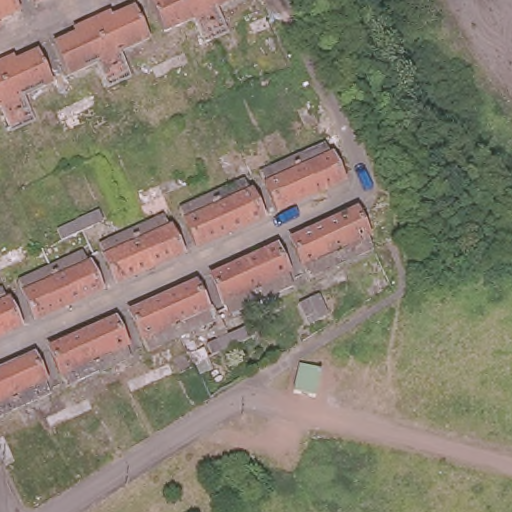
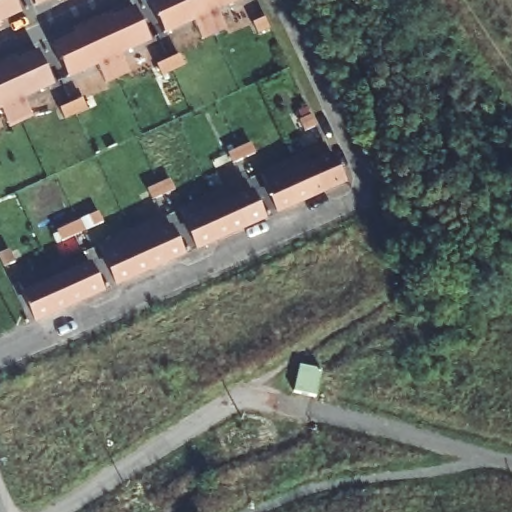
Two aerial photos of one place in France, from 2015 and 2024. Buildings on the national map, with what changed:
unchanged [(0,21),(0,0),(14,0),(19,12),(0,21)]
unchanged [(33,0),(47,0),(35,6),(33,0)]
unchanged [(150,2),(154,0),(198,0),(205,16),(165,34),(150,2)]
unchanged [(240,0),(205,16),(198,0),(240,0)]
unchanged [(105,90),(91,63),(68,73),(53,41),(74,31),(72,26),(89,18),(109,9),(111,15),(134,5),(148,36),(116,51),(128,79),(105,90)]
unchanged [(8,131),(0,111),(0,59),(12,53),(14,59),(37,48),(52,81),(22,94),(35,120),(8,131)]
unchanged [(291,153),(317,141),(325,156),(330,154),(340,178),(308,192),(291,153)]
unchanged [(308,192),(276,206),(265,183),(269,181),(262,166),(291,153),(308,192)]
unchanged [(236,182),(243,197),(248,196),(258,219),(228,233),(210,193),(236,182)]
unchanged [(228,233),(194,248),(184,225),(189,222),(182,206),(210,193),(228,233)]
demolished [(321,225),(355,210),(366,233),(362,235),(367,248),(338,261),(321,225)]
new [(56,232),(98,213),(102,223),(60,242),(56,232)]
unchanged [(155,218),(162,234),(166,233),(177,256),(146,270),(128,230),(155,218)]
demolished [(340,267),(318,276),(316,271),(311,273),(305,260),(300,262),(289,240),(321,225),(338,261),(340,267)]
unchanged [(146,270),(114,284),(103,261),(108,259),(101,242),(128,230),(146,270)]
demolished [(241,261),(272,247),(283,270),(277,272),(283,285),(257,297),(241,261)]
unchanged [(75,254),(82,271),(86,269),(96,292),(65,306),(47,267),(75,254)]
demolished [(260,302),(236,313),(233,308),(229,310),(222,297),(218,298),(207,276),(241,261),(257,297),(260,302)]
unchanged [(65,306),(31,321),(21,297),(27,295),(20,279),(47,267),(65,306)]
demolished [(159,298),(191,284),(201,306),(195,309),(201,323),(196,325),(198,330),(178,340),(159,298)]
demolished [(157,349),(155,344),(150,346),(142,333),(138,335),(127,313),(159,298),(178,340),(157,349)]
demolished [(0,307),(6,304),(16,327),(0,335),(0,305),(0,307)]
demolished [(77,334),(110,320),(120,342),(115,345),(121,358),(94,370),(77,334)]
demolished [(67,382),(61,370),(57,372),(46,348),(77,334),(94,370),(67,382)]
demolished [(0,373),(0,369),(30,356),(41,379),(35,382),(40,394),(35,396),(37,403),(18,411),(15,405),(0,373)]
new [(299,363),(325,370),(317,399),(292,390),(299,363)]
demolished [(0,412),(0,373),(15,405),(0,412)]

